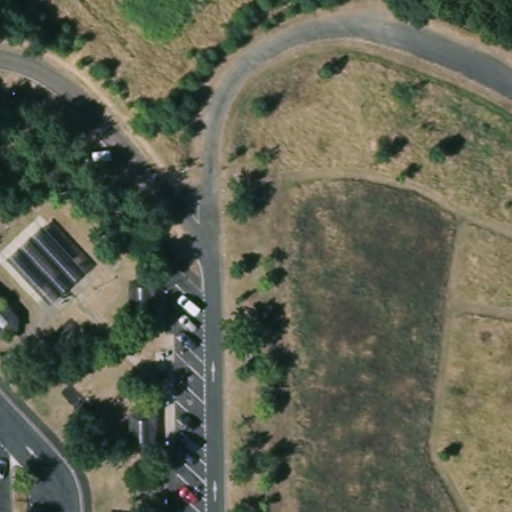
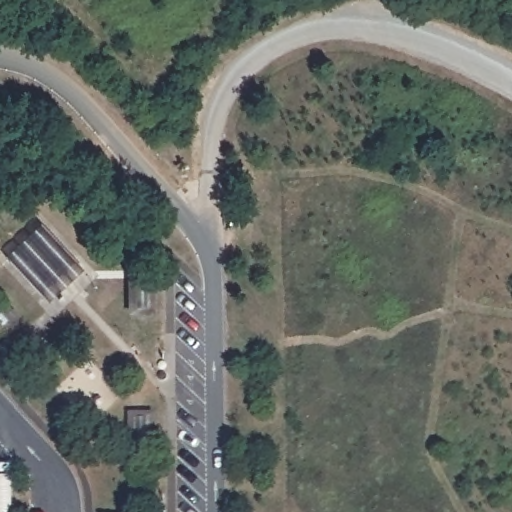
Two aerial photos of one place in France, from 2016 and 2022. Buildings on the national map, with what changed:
unchanged [(82,270),(46,303),(2,255),(41,222),(82,270)]
unchanged [(158,278),(157,315),(125,315),(127,277),(158,278)]
unchanged [(21,325),(8,335),(0,335),(0,294),(19,315),(21,325)]
unchanged [(157,410),(156,448),(126,450),(126,410),(157,410)]

